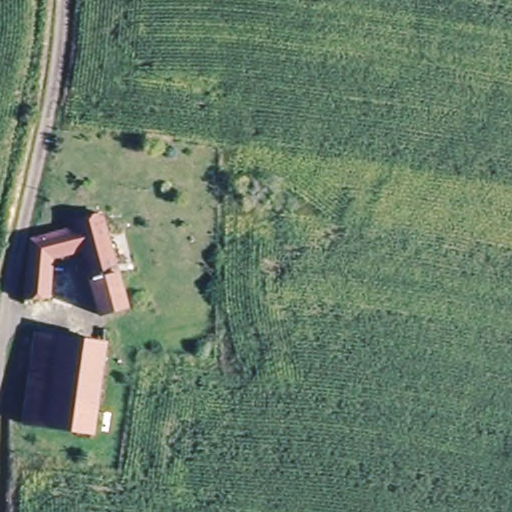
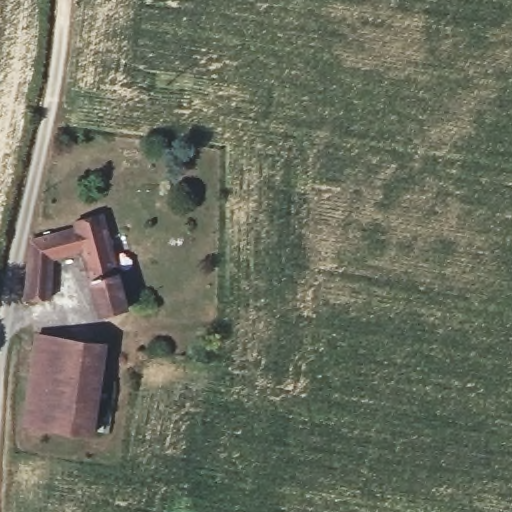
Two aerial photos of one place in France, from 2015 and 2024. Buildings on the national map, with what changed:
unchanged [(74,228),(99,216),(128,308),(99,318),(78,251),(51,260),(45,303),(20,302),(26,242),(74,228)]
unchanged [(95,343),(84,432),(17,424),(30,334),(95,343)]

